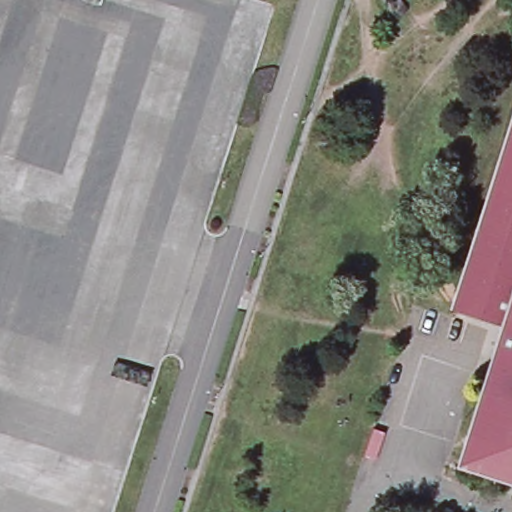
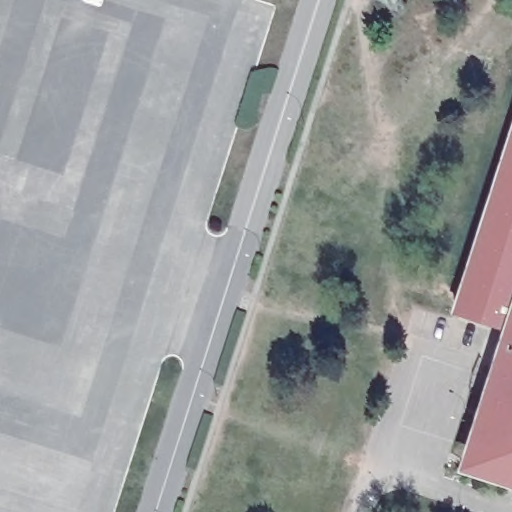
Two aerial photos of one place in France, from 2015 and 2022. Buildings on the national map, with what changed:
unchanged [(507,332),(452,314),(512,134),(512,318),(507,332)]
unchanged [(469,473),(476,453),(466,449),(507,332),(512,318),(512,487),(469,473)]

